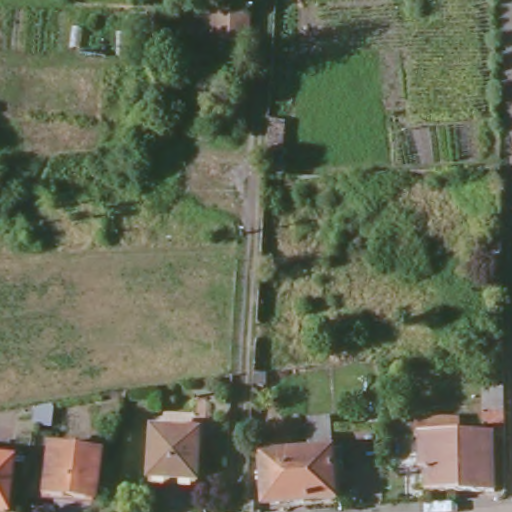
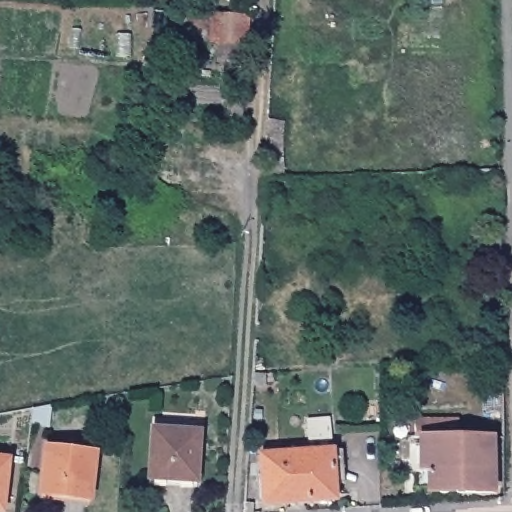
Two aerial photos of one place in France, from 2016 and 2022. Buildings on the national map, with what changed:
unchanged [(200,11),(199,32),(181,31),(182,11),(200,11)]
unchanged [(252,14),(251,28),(240,36),(211,35),(212,12),(252,14)]
unchanged [(247,76),(246,92),(219,90),(220,74),(247,76)]
unchanged [(283,426),(282,436),(264,436),(264,442),(249,442),(251,416),(253,374),(267,375),(264,416),(273,416),(272,425),(283,426)]
unchanged [(463,418),(463,435),(496,436),(495,491),(431,490),(431,436),(418,435),(419,417),(463,418)]
unchanged [(334,449),(338,498),(267,502),(264,453),(310,450),(309,422),(332,420),(334,449)]
unchanged [(207,431),(202,481),(152,477),(156,426),(207,431)]
unchanged [(99,449),(94,495),(45,491),(50,444),(99,449)]
unchanged [(10,457),(5,506),(0,506),(0,456),(10,457)]
unchanged [(257,512),(245,512),(247,475),(260,476),(257,512)]

